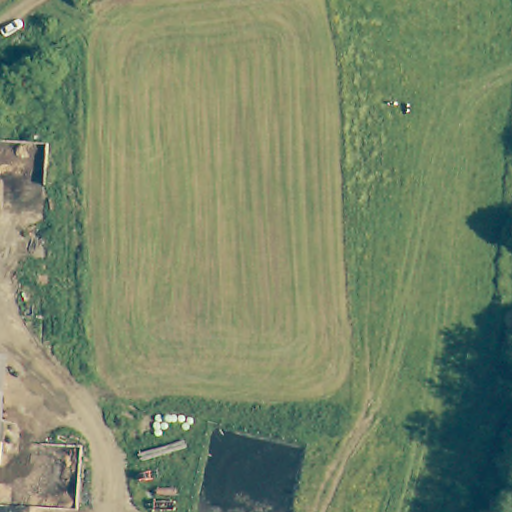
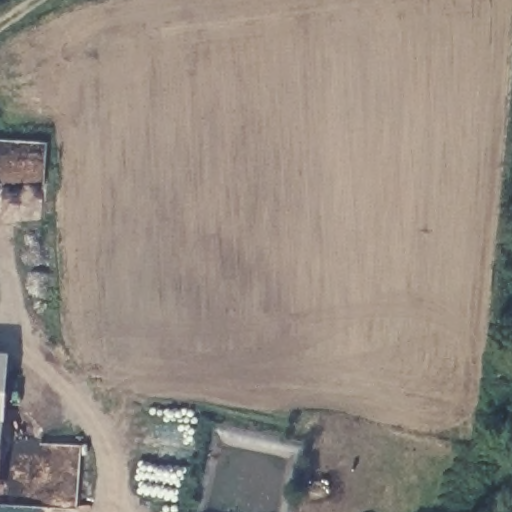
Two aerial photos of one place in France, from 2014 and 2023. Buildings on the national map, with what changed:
unchanged [(0,474),(0,355),(9,355),(0,474)]

